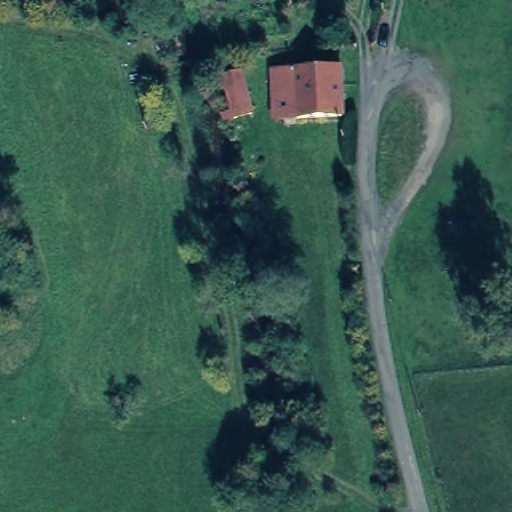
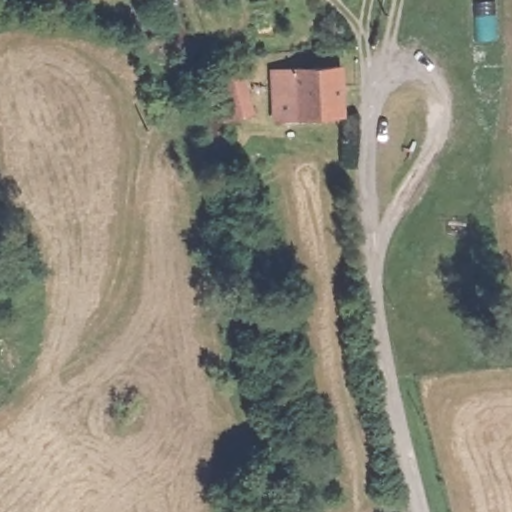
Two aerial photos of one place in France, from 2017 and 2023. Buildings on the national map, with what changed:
unchanged [(329,67),(333,116),(266,121),(263,71),(329,67)]
unchanged [(241,72),(255,116),(236,121),(222,79),(241,72)]

